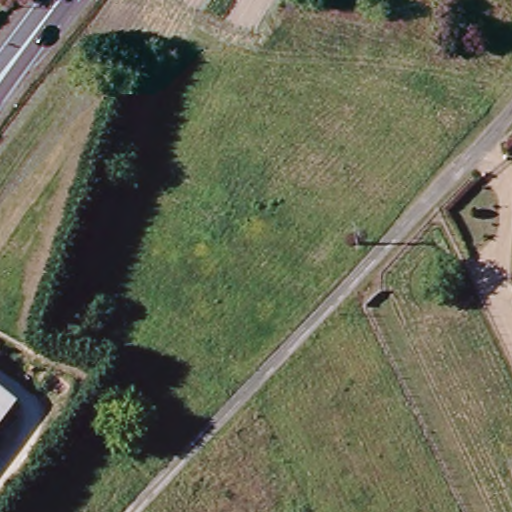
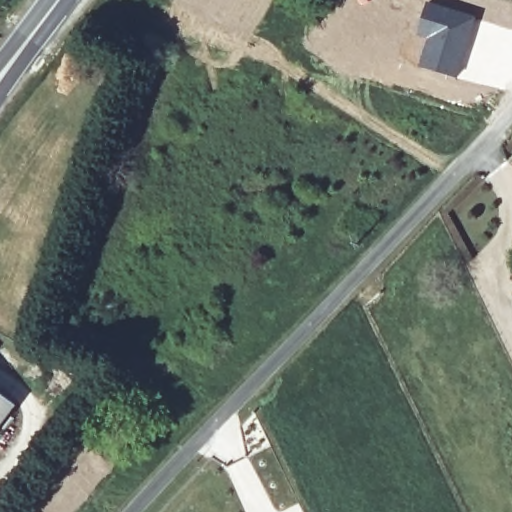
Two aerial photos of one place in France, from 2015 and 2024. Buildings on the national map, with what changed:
new [(427,2),(479,17),(459,76),(419,65),(426,38),(417,35),(427,2)]
unchanged [(23,408),(6,431),(0,427),(0,391),(23,408)]
unchanged [(0,439),(0,427),(6,431),(0,439)]

